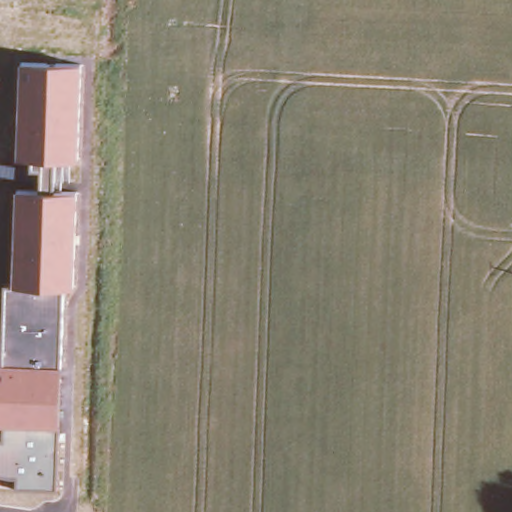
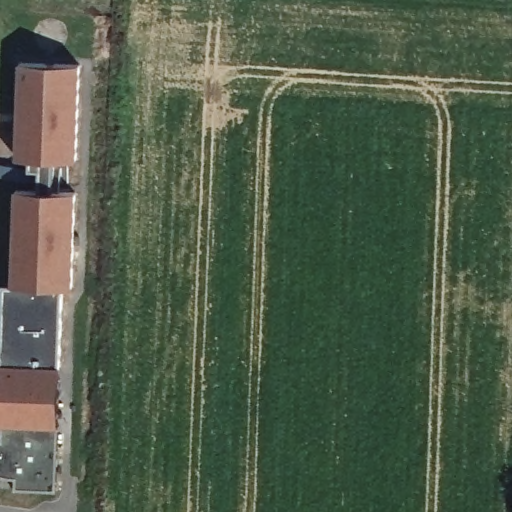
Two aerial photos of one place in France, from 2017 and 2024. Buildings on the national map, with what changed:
unchanged [(21,60),(81,64),(78,156),(18,154),(21,60)]
unchanged [(18,154),(78,156),(78,182),(18,181),(18,154)]
unchanged [(63,286),(14,285),(18,181),(78,182),(74,287),(63,286)]
unchanged [(63,366),(3,363),(5,285),(14,285),(63,286),(63,366)]
unchanged [(58,427),(3,426),(0,425),(0,363),(3,363),(63,366),(60,427),(58,427)]
unchanged [(15,486),(14,478),(0,475),(0,438),(2,439),(3,426),(58,427),(55,488),(15,486)]

